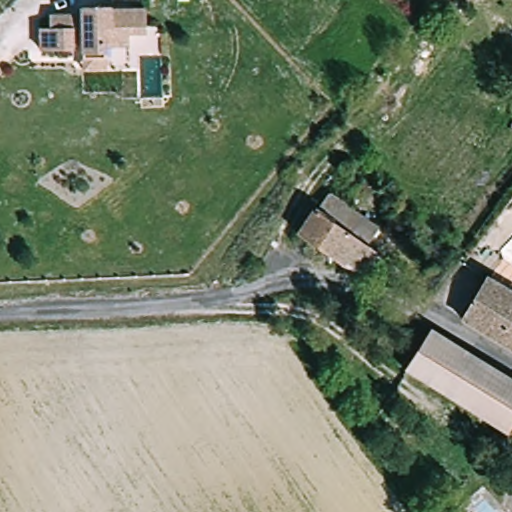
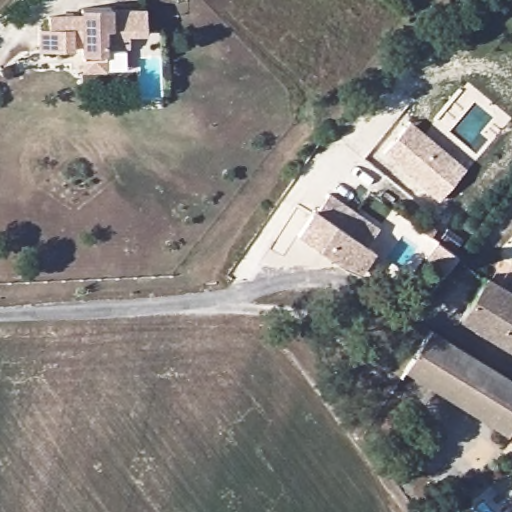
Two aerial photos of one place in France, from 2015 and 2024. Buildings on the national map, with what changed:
unchanged [(85,73),(85,60),(85,42),(74,41),(72,50),(43,50),(44,27),(53,25),(57,12),(84,15),(90,6),(113,5),(112,11),(149,11),(149,35),(133,34),(132,48),(108,49),(106,59),(105,74),(85,73)]
new [(410,121),(465,167),(438,200),(383,153),(410,121)]
unchanged [(348,167),(342,173),(335,166),(340,161),(348,167)]
unchanged [(300,237),(331,200),(380,237),(370,251),(377,257),(359,276),(351,273),(300,237)]
new [(424,258),(436,242),(458,257),(445,275),(424,258)]
unchanged [(512,292),(512,350),(460,318),(486,277),(512,292)]
unchanged [(504,376),(482,420),(403,371),(427,330),(504,376)]
unchanged [(512,381),(512,425),(507,433),(482,420),(504,376),(512,381)]

